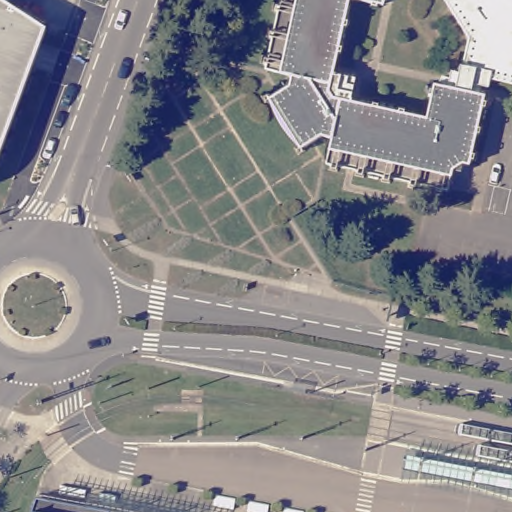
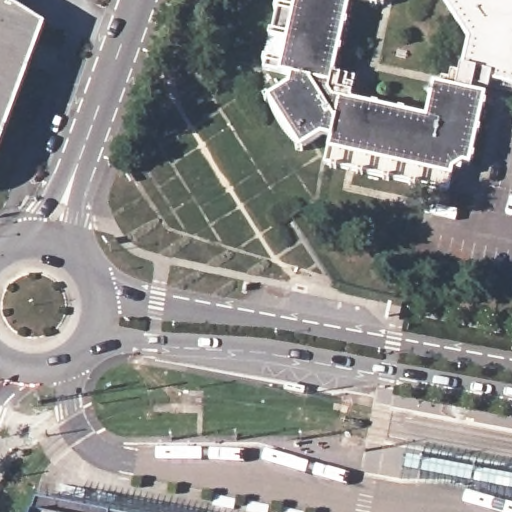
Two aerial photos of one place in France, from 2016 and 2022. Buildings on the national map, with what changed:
unchanged [(8,0),(16,6),(26,12),(45,24),(0,149),(0,0),(8,0)]
unchanged [(416,185),(415,189),(405,187),(406,182),(390,179),(388,183),(380,182),(380,176),(361,173),(361,177),(352,176),(352,170),(335,168),(325,170),(326,165),(321,163),(327,135),(321,133),(303,144),(295,131),(289,120),(272,95),(292,82),(293,75),(262,68),(263,64),(256,62),(259,52),(266,53),(270,36),(263,34),(265,25),(271,27),(275,10),(268,8),(271,0),(344,0),(325,83),(332,93),(419,111),(426,77),(435,78),(437,71),(443,73),(445,65),(454,66),(461,31),(440,0),(512,0),(512,84),(491,80),(489,88),(481,87),(480,92),(484,94),(481,101),(488,102),(486,110),(482,108),(476,125),(483,127),(481,136),(475,134),(470,151),(477,153),(475,162),(470,159),(468,164),(461,163),(451,169),(446,190),(441,195),(433,194),(435,187),(416,185)]
unchanged [(256,99),(251,92),(258,87),(263,95),(256,99)]
unchanged [(292,157),(288,149),(294,145),(298,152),(292,157)]
unchanged [(28,512),(32,495),(111,512),(28,512)]

